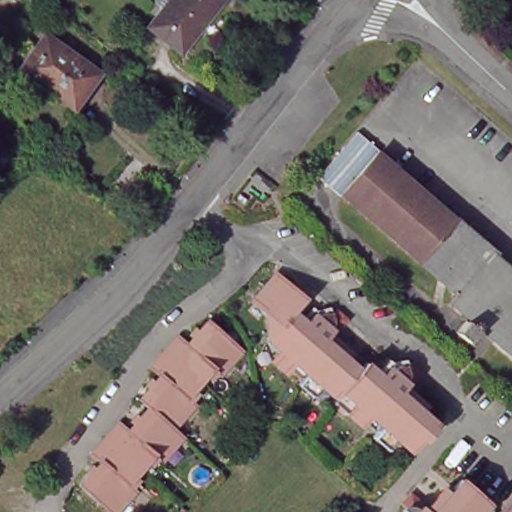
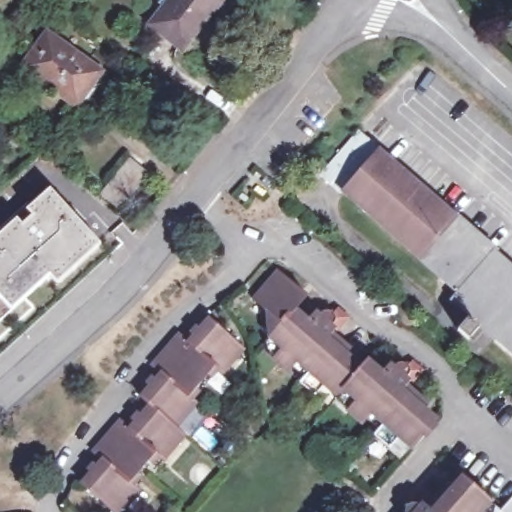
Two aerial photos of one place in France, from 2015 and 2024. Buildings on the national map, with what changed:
unchanged [(148,29),(172,0),(226,0),(180,55),(148,29)]
unchanged [(75,108),(21,69),(47,33),(100,71),(75,108)]
unchanged [(325,177),(365,132),(387,151),(347,197),(325,177)]
unchanged [(462,222),(426,262),(350,195),(386,155),(462,222)]
new [(97,236),(16,310),(25,319),(0,342),(0,236),(53,188),(97,236)]
unchanged [(512,265),(512,351),(458,305),(465,295),(426,262),(462,222),(512,265)]
unchanged [(321,313),(325,317),(330,313),(331,312),(332,310),(335,310),(336,311),(338,313),(340,314),(345,309),(354,317),(356,319),(344,333),(341,331),(335,339),(368,368),(375,361),(390,374),(396,366),(400,369),(401,368),(403,366),(404,365),(406,364),(407,364),(409,364),(411,364),(412,366),(413,367),(417,363),(427,372),(428,373),(418,385),(415,383),(409,391),(430,409),(425,414),(437,424),(415,449),(403,439),(395,448),(382,437),(391,428),(376,414),(367,424),(340,400),(342,398),(330,386),(321,396),(308,384),(316,374),(303,363),(295,372),(281,359),(289,349),(275,337),(276,335),(276,334),(274,333),(272,331),(271,309),(258,299),(283,270),(307,293),(312,298),(302,310),(313,320),(321,313)]
unchanged [(135,487),(137,489),(116,512),(114,512),(85,484),(92,475),(87,471),(95,463),(100,467),(105,461),(97,453),(122,423),(131,431),(136,424),(131,421),(138,413),(143,417),(151,407),(143,399),(151,389),(146,384),(153,376),(158,381),(164,374),(155,366),(181,337),(191,344),(197,338),(191,333),(197,326),(202,330),(212,320),(245,348),(223,372),(220,370),(212,379),(205,374),(200,379),(194,386),(201,393),(193,401),(196,403),(175,427),(185,436),(163,459),(161,457),(154,465),(147,459),(140,467),(135,474),(141,481),(135,487)]
unchanged [(465,332),(473,322),(485,332),(477,342),(465,332)]
unchanged [(463,479),(491,503),(483,512),(435,512),(463,479)]
unchanged [(406,506),(402,503),(412,491),(424,502),(422,504),(432,512),(408,512),(406,506)]
unchanged [(512,507),(512,512),(507,512),(512,507)]

